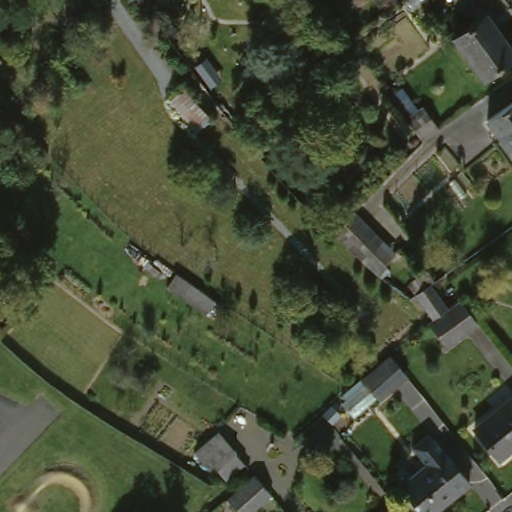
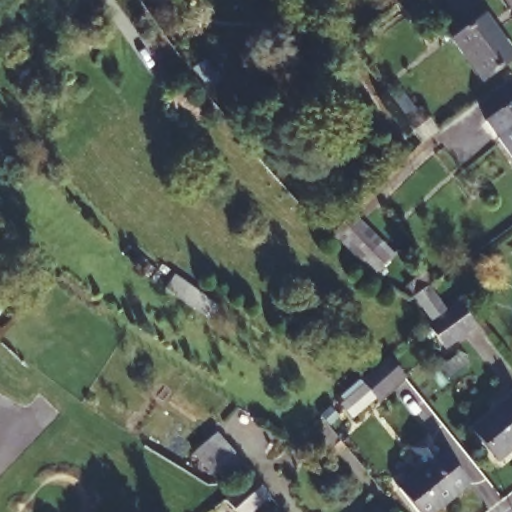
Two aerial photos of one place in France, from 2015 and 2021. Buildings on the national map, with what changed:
unchanged [(486,12),(512,51),(481,75),(453,35),(486,12)]
unchanged [(512,105),(512,147),(492,119),(512,105)]
unchanged [(396,120),(414,107),(428,126),(410,140),(396,120)]
unchanged [(386,275),(330,236),(351,209),(395,248),(386,275)]
unchanged [(10,243),(8,245),(0,252),(0,237),(2,235),(10,243)]
unchanged [(429,284),(439,277),(449,271),(465,296),(446,309),(429,284)]
unchanged [(463,300),(481,320),(449,344),(433,323),(463,300)]
unchanged [(338,410),(362,393),(355,385),(384,362),(402,385),(373,406),(371,405),(348,422),(338,410)]
unchanged [(512,398),(512,449),(497,460),(472,427),(512,398)]
unchanged [(416,451),(433,438),(450,458),(448,460),(471,488),(440,512),(417,512),(401,491),(429,469),(416,451)]
unchanged [(198,461),(225,443),(238,463),(214,481),(211,480),(198,461)]
unchanged [(232,512),(222,499),(239,485),(250,476),(266,498),(246,512),(232,512)]

